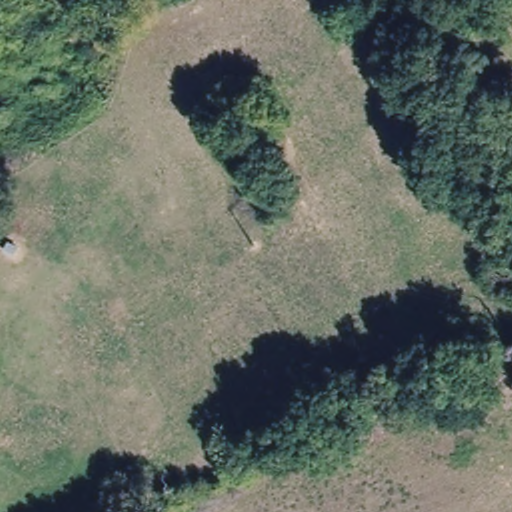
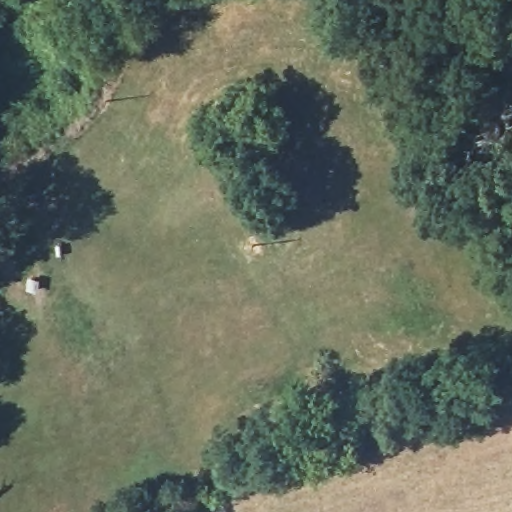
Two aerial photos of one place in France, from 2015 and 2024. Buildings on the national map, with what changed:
[]

